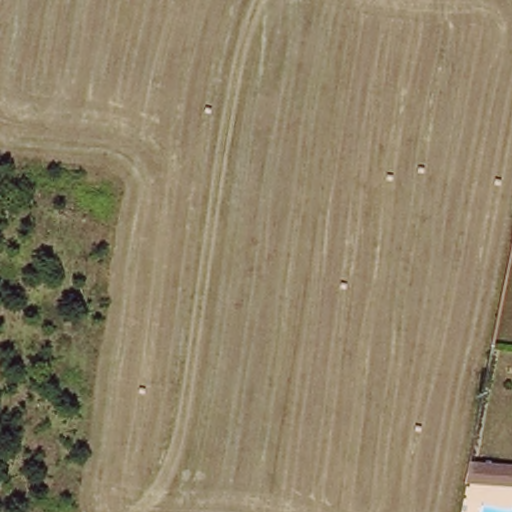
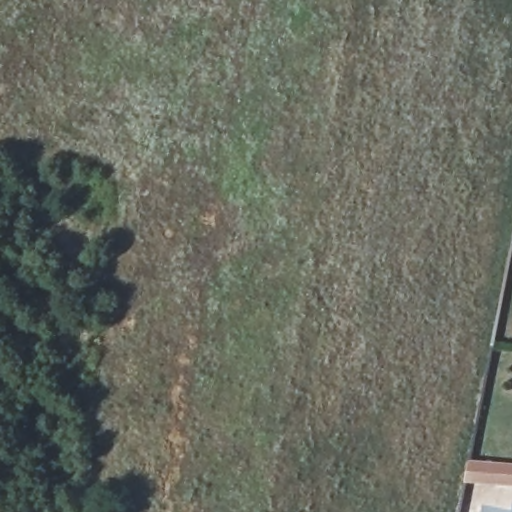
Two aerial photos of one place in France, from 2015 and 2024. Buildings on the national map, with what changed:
[]

